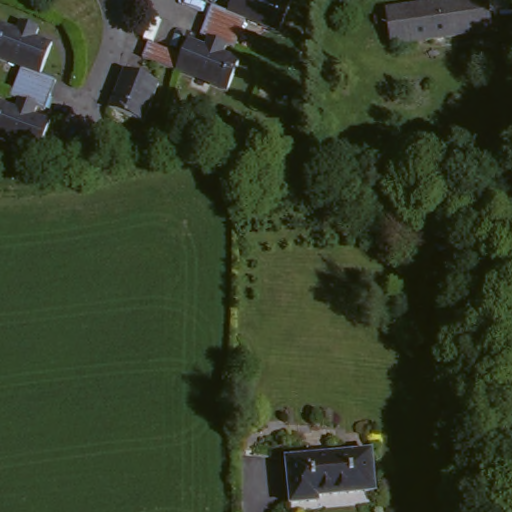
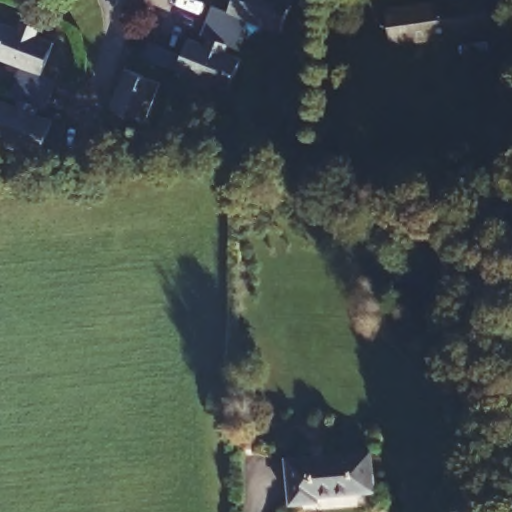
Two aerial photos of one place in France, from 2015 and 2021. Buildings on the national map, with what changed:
unchanged [(180,51),(184,45),(189,34),(205,40),(207,34),(200,31),(205,19),(205,17),(260,2),(269,0),(290,0),(278,29),(246,16),(235,44),(227,41),(224,49),(240,55),(227,87),(177,67),(142,53),(149,38),(180,51)]
unchanged [(205,17),(212,0),(227,6),(230,0),(269,0),(260,2),(205,17)]
unchanged [(487,0),(491,31),(391,45),(386,10),(458,0),(487,0)]
unchanged [(42,110),(38,107),(35,115),(42,117),(51,121),(39,154),(0,139),(0,101),(16,107),(18,100),(11,97),(22,68),(0,60),(0,27),(2,23),(17,30),(21,21),(40,29),(36,36),(53,44),(47,59),(41,75),(46,77),(56,81),(45,110),(42,110)]
unchanged [(109,110),(125,69),(160,84),(143,124),(109,110)]
unchanged [(420,216),(476,222),(474,243),(418,237),(420,216)]
unchanged [(372,452),(375,492),(318,498),(318,502),(290,505),(286,460),(372,452)]

